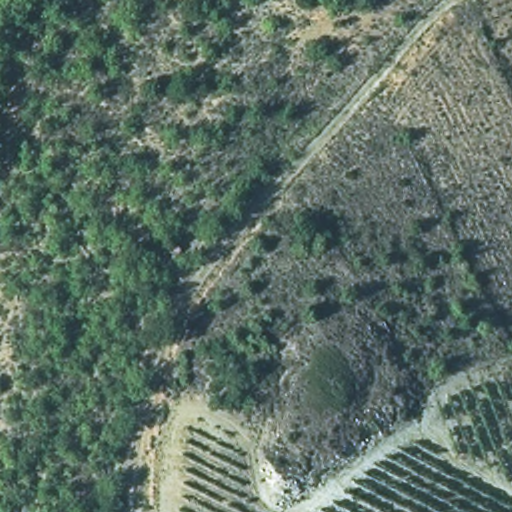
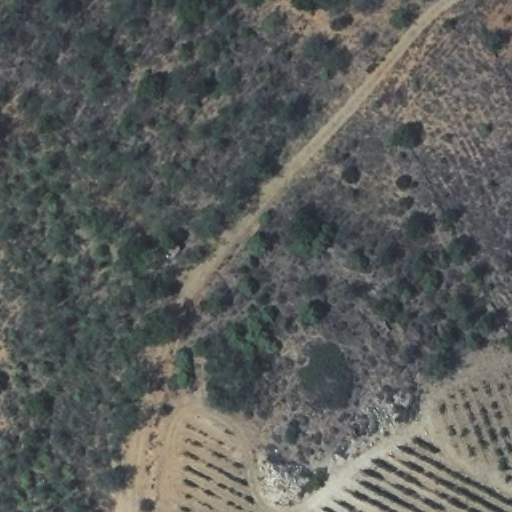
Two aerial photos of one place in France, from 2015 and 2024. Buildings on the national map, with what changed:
[]

